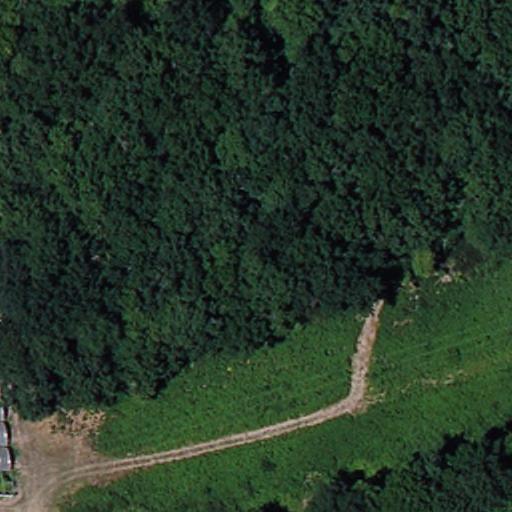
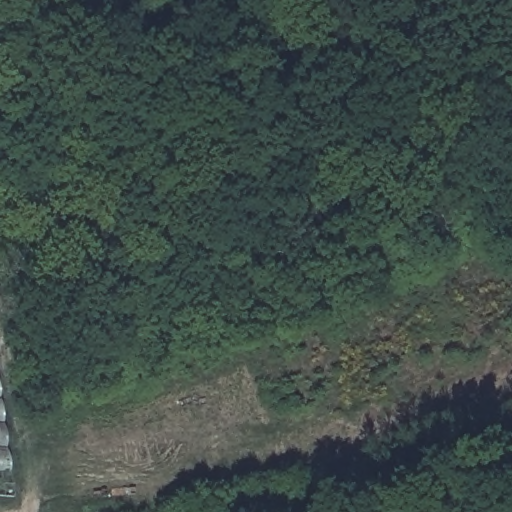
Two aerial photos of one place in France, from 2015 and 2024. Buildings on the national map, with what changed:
unchanged [(15,498),(0,498),(0,383),(15,498)]

